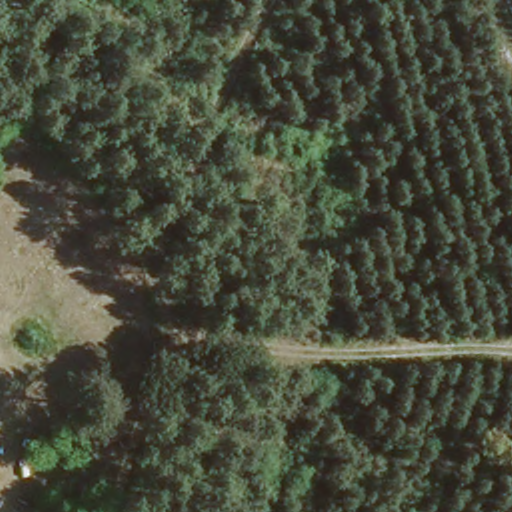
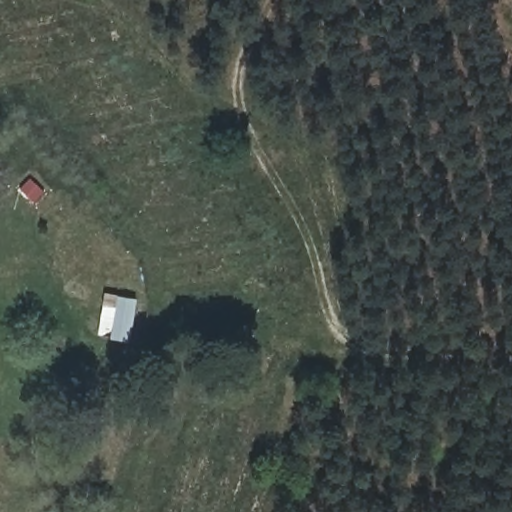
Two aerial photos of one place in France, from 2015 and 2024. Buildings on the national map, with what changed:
new [(105,294),(137,299),(130,341),(98,336),(105,294)]

